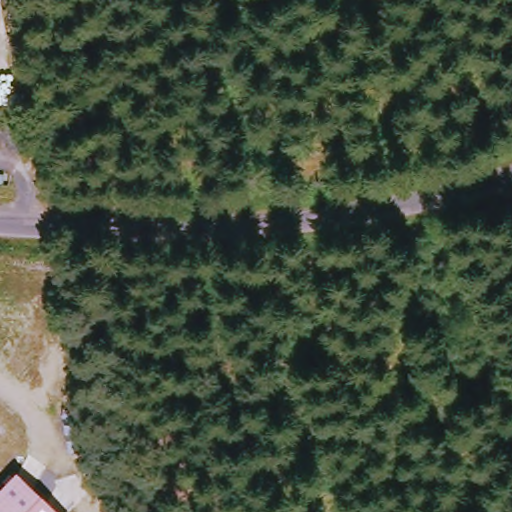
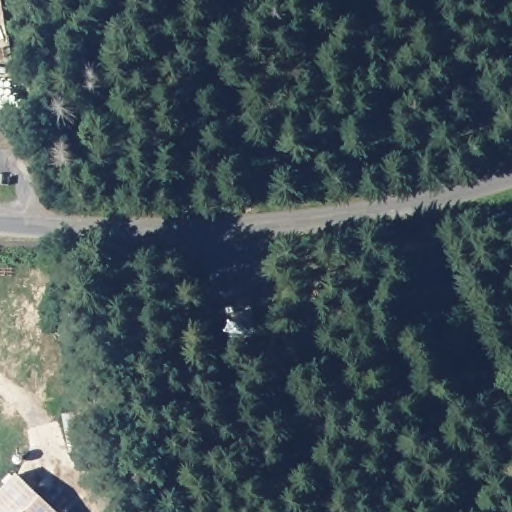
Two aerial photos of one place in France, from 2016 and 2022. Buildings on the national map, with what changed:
unchanged [(0,512),(0,490),(14,473),(56,512),(0,512)]

